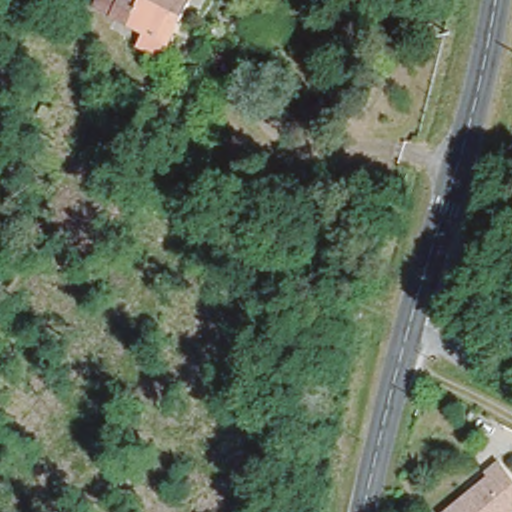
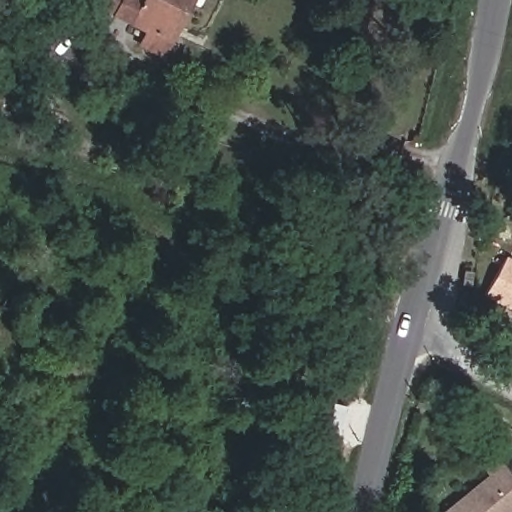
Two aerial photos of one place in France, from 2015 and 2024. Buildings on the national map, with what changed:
unchanged [(84,0),(194,0),(171,51),(109,29),(115,16),(84,1),(84,0)]
unchanged [(202,2),(196,0),(203,0),(202,2)]
new [(506,256),(512,259),(512,311),(485,295),(506,256)]
unchanged [(442,512),(486,478),(482,472),(496,460),(512,481),(512,512),(442,512)]

